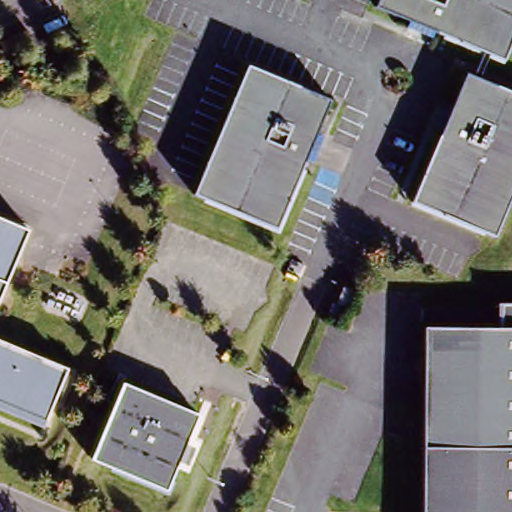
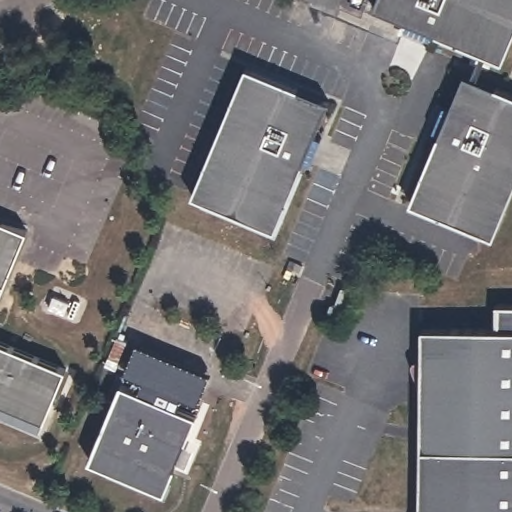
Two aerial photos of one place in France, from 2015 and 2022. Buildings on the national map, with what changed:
unchanged [(437,128),(447,102),(453,105),(467,71),(473,74),(483,50),(476,47),(435,29),(432,36),(406,25),(408,19),(375,5),(376,0),(512,0),(512,36),(503,58),(496,55),(487,79),(512,89),(512,199),(497,235),(415,200),(443,130),(437,128)]
unchanged [(310,160),(304,157),(275,227),(193,193),(247,64),(328,98),(315,132),(321,135),(310,160)]
unchanged [(32,235),(0,314),(0,221),(32,235)]
unchanged [(344,309),(335,305),(341,289),(350,293),(344,309)]
unchanged [(420,372),(421,331),(496,332),(496,302),(512,302),(512,512),(419,512),(420,452),(420,372)]
unchanged [(339,308),(334,321),(324,317),(328,304),(339,308)]
unchanged [(72,374),(50,428),(0,407),(0,343),(72,374)]
unchanged [(188,461),(178,457),(167,487),(92,455),(123,380),(198,411),(186,440),(195,444),(188,461)]

